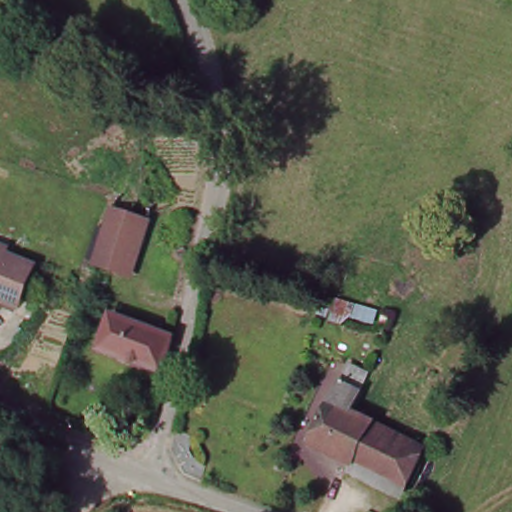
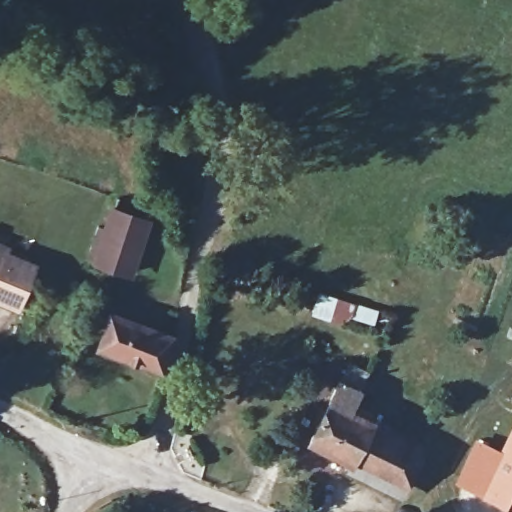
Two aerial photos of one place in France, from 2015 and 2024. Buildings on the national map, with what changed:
unchanged [(116,197),(156,210),(132,273),(95,261),(116,197)]
unchanged [(0,249),(30,260),(15,302),(0,296),(0,244),(1,245),(0,249)]
unchanged [(360,323),(345,320),(349,303),(365,308),(360,323)]
unchanged [(175,341),(163,374),(160,373),(100,351),(115,317),(166,336),(175,341)]
unchanged [(346,400),(323,450),(305,441),(349,357),(364,364),(346,400)]
unchanged [(346,400),(429,446),(405,493),(323,450),(346,400)]
new [(502,446),(512,424),(512,503),(456,477),(475,433),(502,446)]

